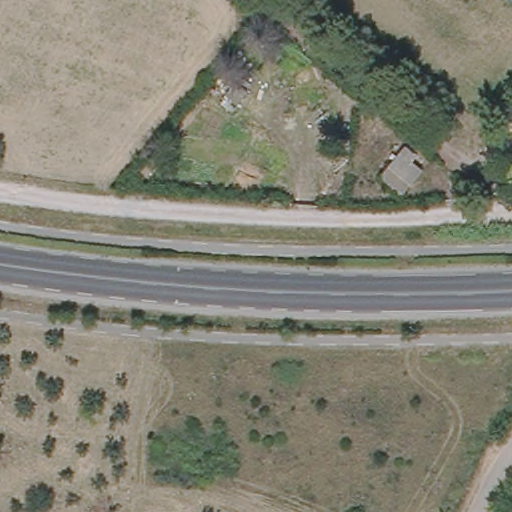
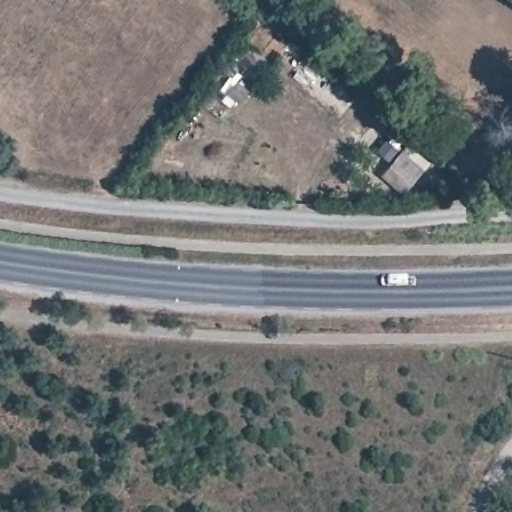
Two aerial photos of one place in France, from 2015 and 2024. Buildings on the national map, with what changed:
unchanged [(401,192),(381,175),(397,159),(407,167),(402,172),(412,181),(401,192)]

